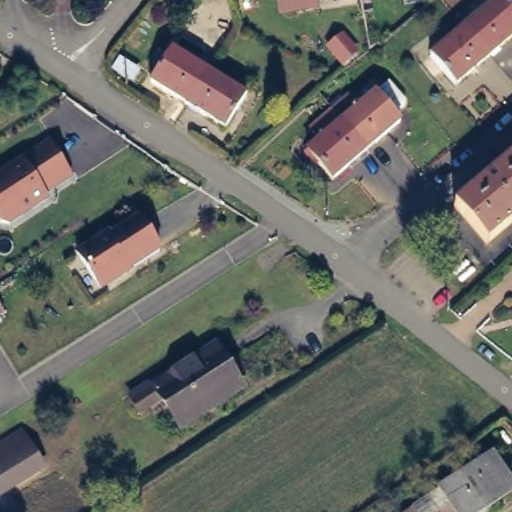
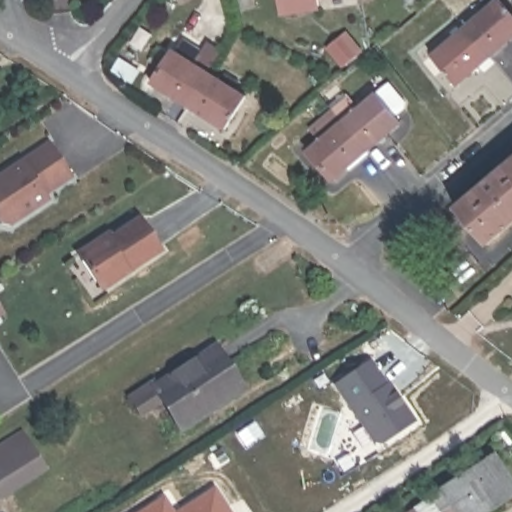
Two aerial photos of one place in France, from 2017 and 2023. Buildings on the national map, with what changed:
unchanged [(280,0),(314,0),(315,6),(281,12),(280,0)]
unchanged [(512,15),(512,41),(492,59),(467,29),(501,1),(512,15)]
unchanged [(492,59),(457,89),(432,59),(467,29),(492,59)]
unchanged [(185,105),(149,82),(171,49),(207,71),(185,105)]
unchanged [(185,105),(207,71),(242,94),(221,128),(185,105)]
unchanged [(351,96),(360,107),(379,92),(405,121),(370,150),(345,121),(335,109),(351,96)]
unchanged [(370,150),(338,179),(311,149),(345,121),(370,150)]
unchanged [(47,142),(71,175),(46,191),(50,199),(4,227),(0,221),(0,171),(47,141),(47,142)]
unchanged [(512,227),(488,248),(455,210),(512,160),(512,227)]
unchanged [(111,230),(115,233),(142,216),(163,248),(103,287),(80,251),(111,230)]
unchanged [(134,397),(155,383),(158,387),(217,349),(243,390),(184,427),(166,400),(145,414),(134,397)]
new [(415,422),(383,444),(370,441),(333,386),(371,361),(386,383),(389,381),(415,422)]
unchanged [(0,488),(0,442),(15,432),(22,445),(35,467),(0,488)]
unchanged [(488,461),(510,496),(485,512),(411,512),(488,461)]

